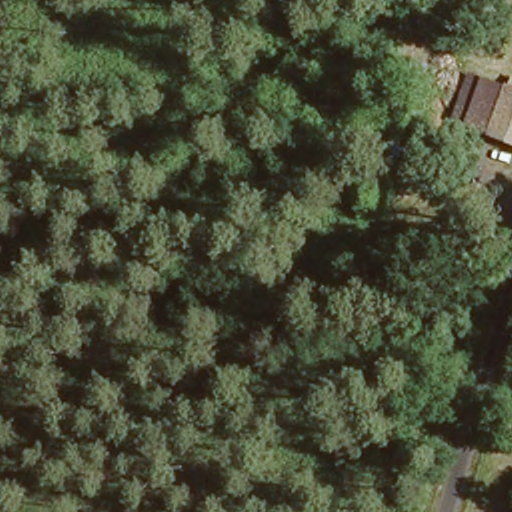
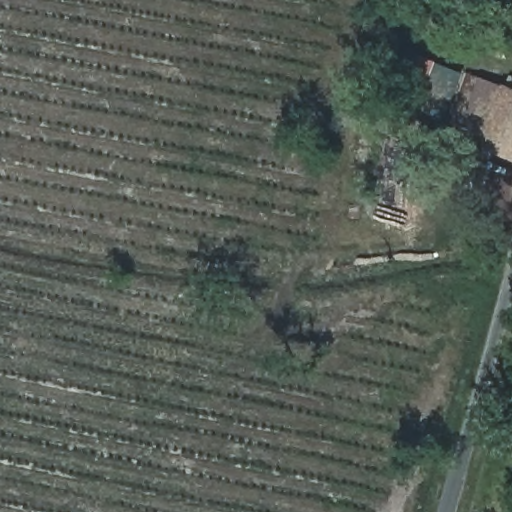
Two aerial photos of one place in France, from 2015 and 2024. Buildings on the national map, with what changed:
unchanged [(487,69),(481,88),(465,84),(470,64),(487,69)]
unchanged [(486,133),(503,81),(512,85),(512,143),(486,133)]

